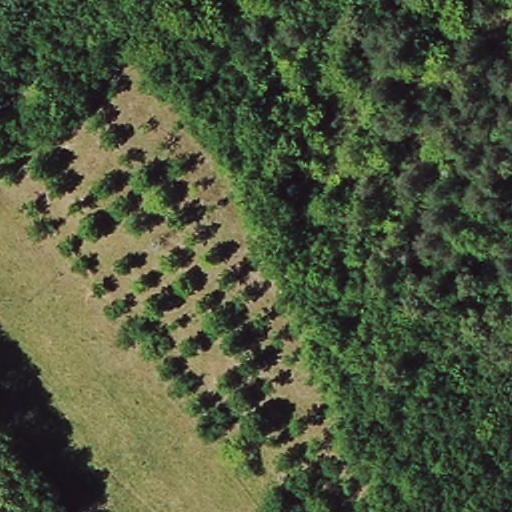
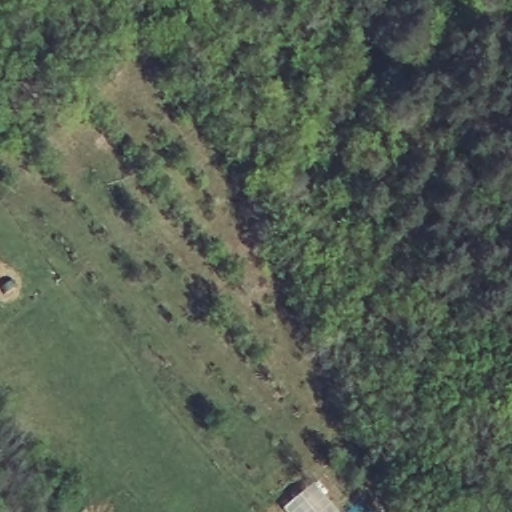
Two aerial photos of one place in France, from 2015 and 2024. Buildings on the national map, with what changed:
new [(312,484),(335,512),(283,512),(281,509),(312,484)]

